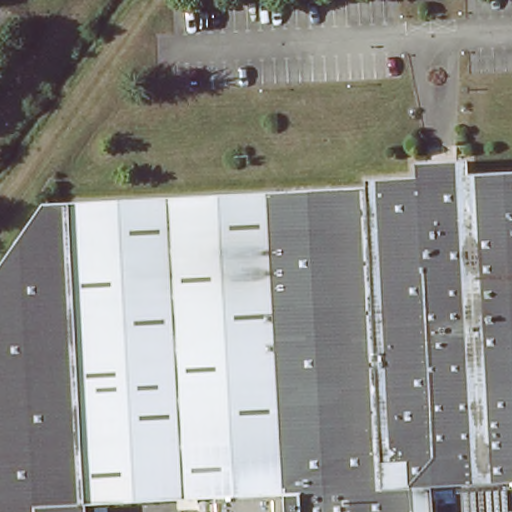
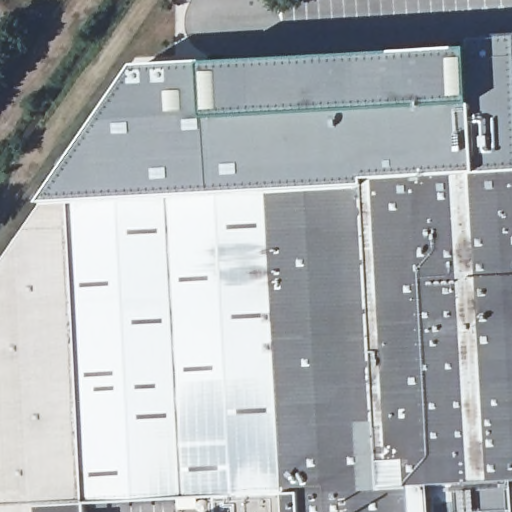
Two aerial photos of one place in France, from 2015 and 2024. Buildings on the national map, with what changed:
new [(470,157),(418,160),(419,183),(368,186),(44,204),(137,68),(207,67),(475,54),(474,42),(512,40),(512,178),(471,180),(470,157)]
unchanged [(418,160),(470,157),(471,180),(419,183),(418,160)]
unchanged [(88,499),(89,512),(0,512),(0,267),(44,204),(368,186),(419,183),(471,180),(512,178),(512,512),(217,512),(217,493),(88,499)]

